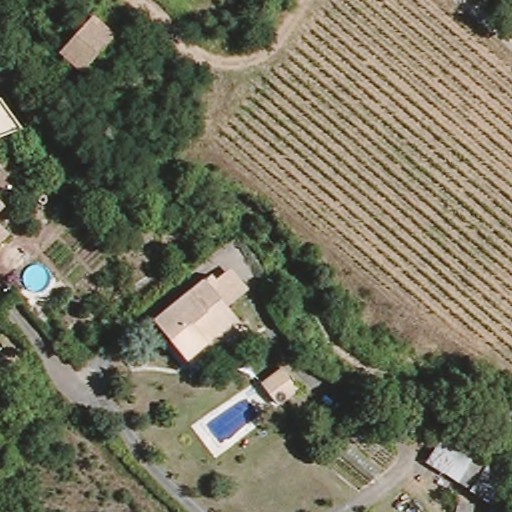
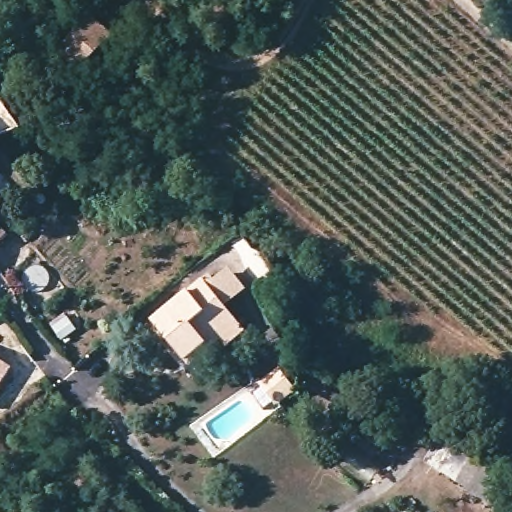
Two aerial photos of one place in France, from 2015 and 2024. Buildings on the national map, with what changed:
unchanged [(54,54),(86,21),(111,40),(78,73),(54,54)]
unchanged [(0,144),(0,99),(9,91),(19,109),(28,122),(0,144)]
unchanged [(4,205),(0,210),(0,200),(4,205)]
unchanged [(11,232),(0,241),(0,220),(11,232)]
unchanged [(224,347),(213,333),(176,361),(146,318),(206,277),(208,281),(218,276),(233,299),(226,306),(233,317),(244,333),(224,347)]
new [(13,368),(0,388),(0,360),(13,368)]
unchanged [(281,372),(298,395),(280,408),(263,385),(281,372)]
unchanged [(478,447),(461,478),(430,461),(446,429),(478,447)]

